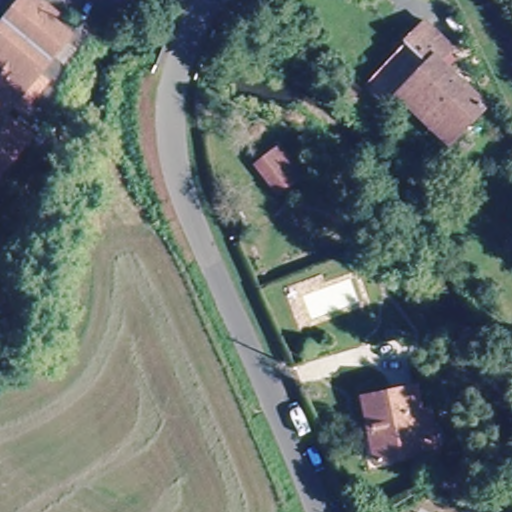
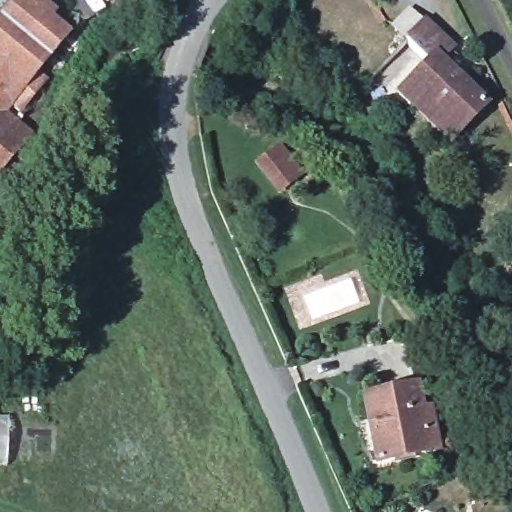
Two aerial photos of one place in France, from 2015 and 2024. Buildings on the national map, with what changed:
unchanged [(32,86),(22,99),(15,93),(0,111),(0,16),(13,0),(19,0),(62,36),(26,81),(32,86)]
unchanged [(404,94),(417,80),(433,64),(411,43),(430,22),(457,49),(445,61),(490,105),(464,132),(454,143),(404,94)]
unchanged [(0,167),(0,118),(24,138),(0,167)]
unchanged [(273,153),(279,149),(300,177),(295,181),(279,193),(257,165),(273,153)]
unchanged [(432,448),(423,450),(423,453),(375,463),(362,397),(410,387),(416,415),(425,413),(432,448)]
new [(6,464),(0,463),(0,418),(9,418),(6,464)]

